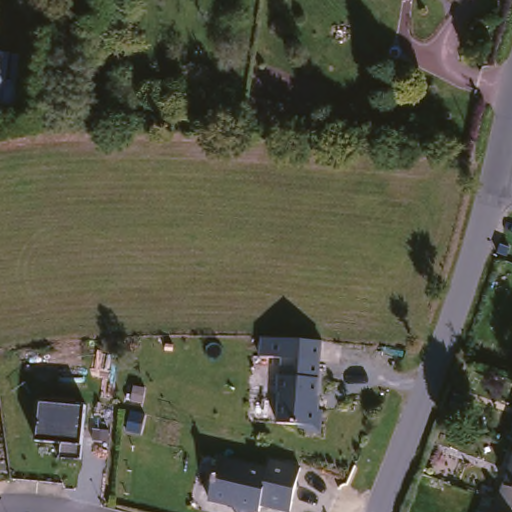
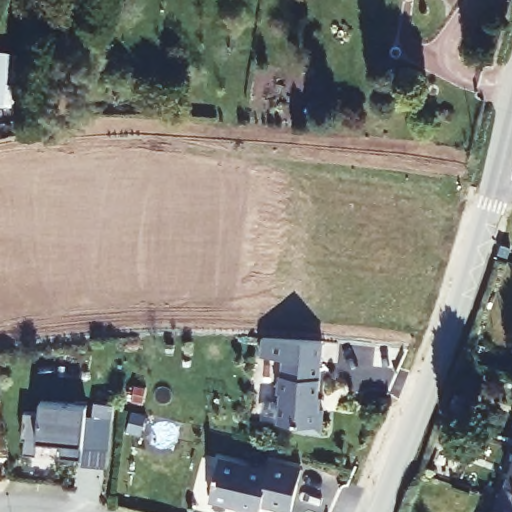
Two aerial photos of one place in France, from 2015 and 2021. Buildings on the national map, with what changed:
unchanged [(0,53),(22,56),(19,101),(0,101),(0,53)]
unchanged [(325,428),(326,450),(303,450),(303,444),(282,444),(282,414),(279,414),(279,397),(282,397),(282,379),(259,379),(259,361),(259,360),(319,359),(319,361),(319,428),(325,428)]
unchanged [(0,410),(0,388),(4,410),(0,410)]
unchanged [(37,438),(40,402),(86,406),(83,444),(81,457),(61,454),(62,443),(37,438)]
unchanged [(219,459),(270,469),(272,459),(303,465),(294,509),(264,504),(263,512),(260,511),(259,512),(241,512),(237,507),(212,502),(219,459)]
unchanged [(498,499),(504,479),(509,481),(512,471),(512,504),(498,499)]
unchanged [(498,499),(512,504),(512,512),(493,512),(498,499)]

